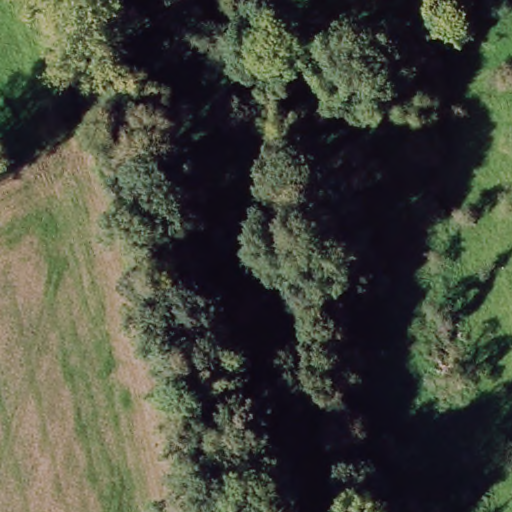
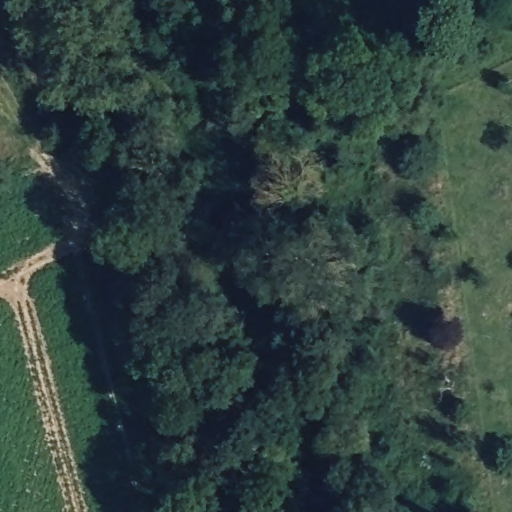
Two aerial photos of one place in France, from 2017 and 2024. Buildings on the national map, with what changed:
unchanged [(194,0),(218,0),(219,4),(197,11),(194,0)]

